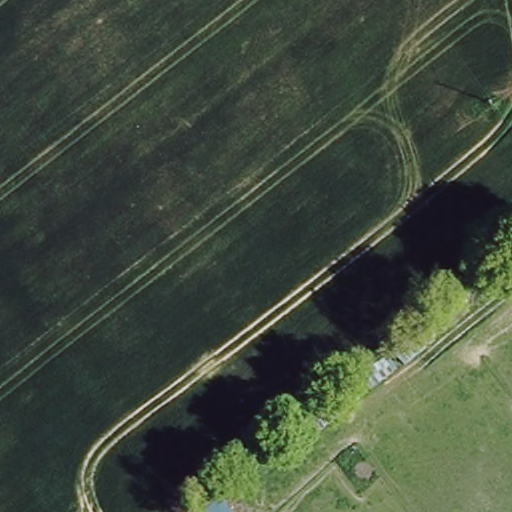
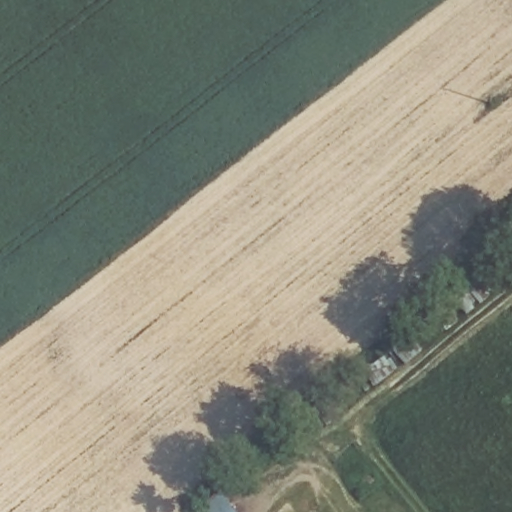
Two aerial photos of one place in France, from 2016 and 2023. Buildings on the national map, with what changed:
unchanged [(199,512),(218,498),(229,512),(199,512)]

